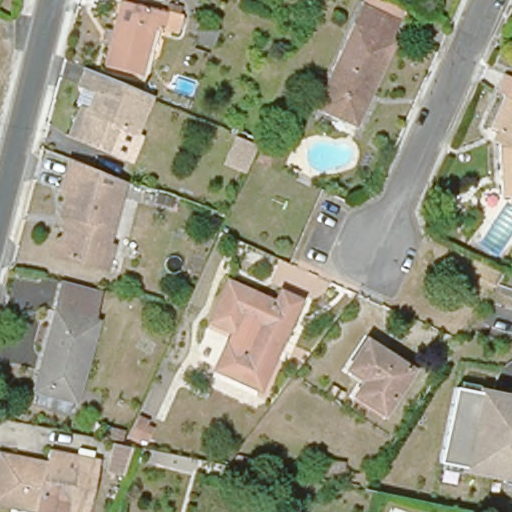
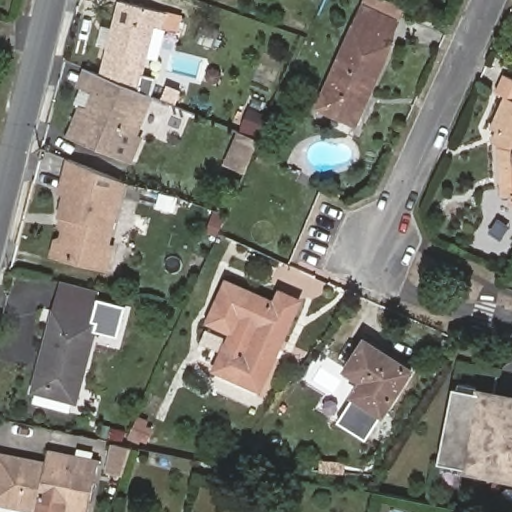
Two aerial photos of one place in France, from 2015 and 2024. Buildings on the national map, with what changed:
unchanged [(146,55),(141,76),(105,67),(121,2),(178,16),(175,31),(162,29),(155,57),(146,55)]
unchanged [(387,40),(390,42),(366,96),(363,95),(348,125),(315,109),(362,5),(395,20),(387,40)]
unchanged [(215,49),(192,40),(202,16),(224,25),(215,49)]
unchanged [(117,130),(107,153),(66,137),(77,107),(86,110),(92,95),(81,91),(74,88),(81,68),(88,71),(149,96),(133,137),(117,130)]
unchanged [(503,197),(500,147),(500,144),(494,140),(498,131),(493,128),(507,97),(498,93),(507,74),(512,76),(512,196),(503,197)]
unchanged [(244,178),(217,168),(231,134),(257,142),(244,178)]
unchanged [(108,264),(94,260),(57,250),(51,248),(55,234),(61,236),(68,212),(62,210),(67,189),(63,187),(72,155),(83,159),(125,176),(107,241),(113,242),(108,264)]
unchanged [(36,402),(39,391),(35,390),(55,313),(62,284),(99,294),(96,306),(91,323),(95,324),(75,401),(72,400),(69,410),(36,402)]
unchanged [(280,294),(298,302),(260,390),(216,369),(226,345),(245,353),(256,327),(239,320),(232,333),(211,322),(227,284),(275,305),(280,294)]
unchanged [(382,414),(355,395),(363,381),(348,370),(367,343),(410,372),(382,414)]
unchanged [(437,468),(452,384),(512,395),(512,483),(437,468)]
unchanged [(136,419),(154,424),(146,444),(127,442),(136,419)]
unchanged [(122,478),(103,472),(107,446),(132,449),(122,478)]
unchanged [(0,504),(0,458),(24,464),(29,447),(95,459),(83,512),(59,512),(31,512),(31,510),(0,504)]
unchanged [(311,471),(313,455),(345,459),(342,474),(311,471)]

